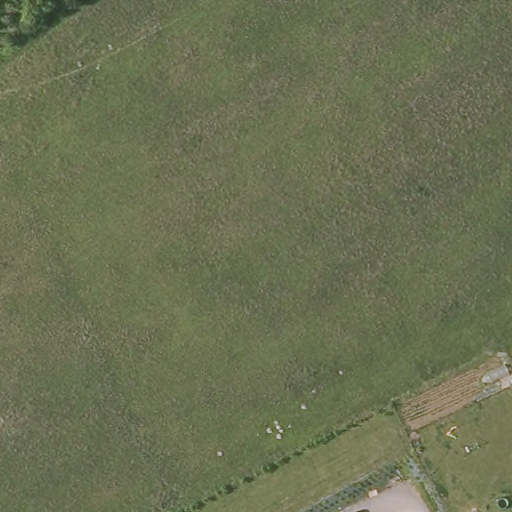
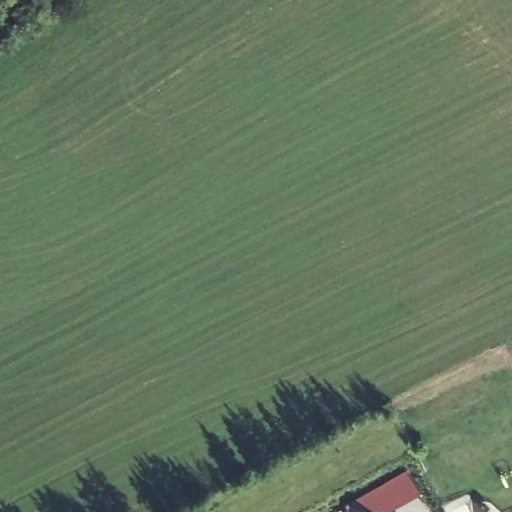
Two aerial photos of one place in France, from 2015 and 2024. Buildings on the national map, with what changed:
new [(422,493),(389,512),(352,512),(349,502),(408,469),(422,493)]

